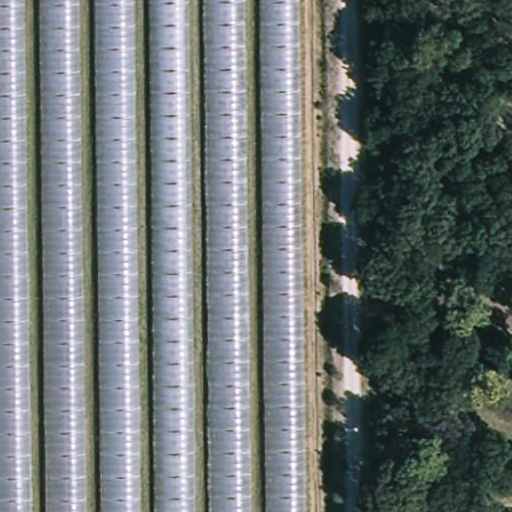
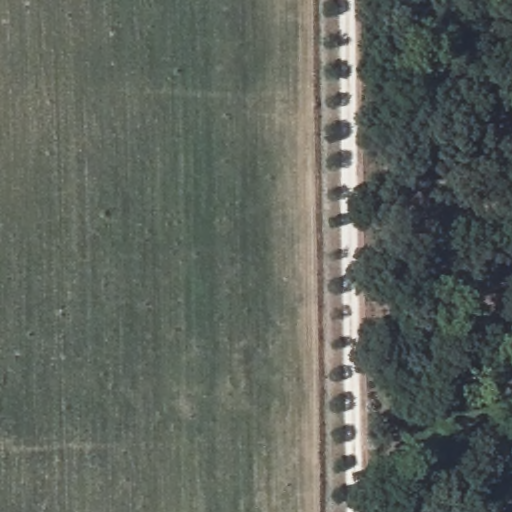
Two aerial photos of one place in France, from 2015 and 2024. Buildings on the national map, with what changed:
demolished [(303,0),(309,512),(0,512),(0,0),(303,0)]

